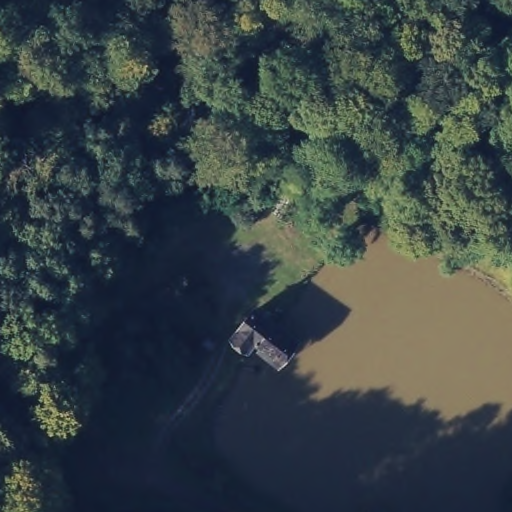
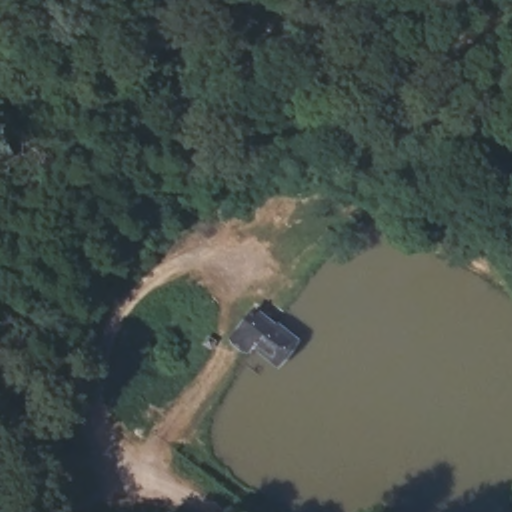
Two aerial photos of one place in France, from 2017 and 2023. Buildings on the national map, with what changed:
unchanged [(255,354),(228,336),(250,305),(274,321),(255,354)]
unchanged [(303,339),(280,371),(255,354),(274,321),(303,339)]

